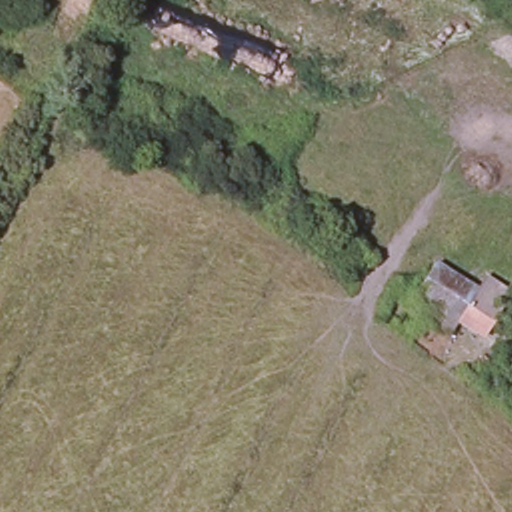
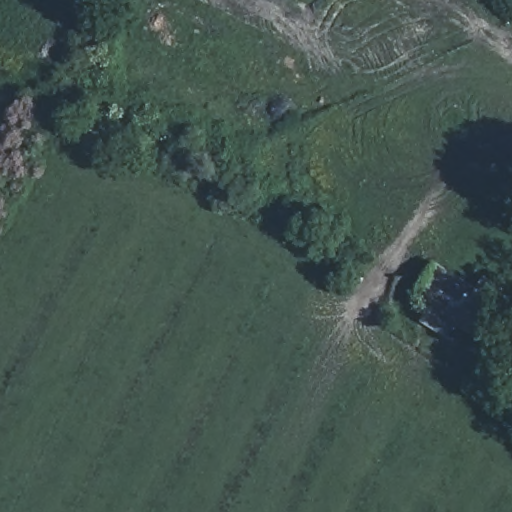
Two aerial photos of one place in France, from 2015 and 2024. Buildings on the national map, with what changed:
unchanged [(470,294),(480,280),(510,298),(502,315),(512,321),(512,322),(496,350),(417,303),(437,274),(470,294)]

